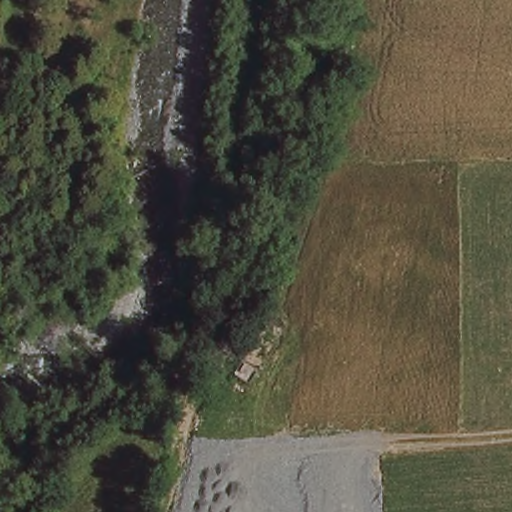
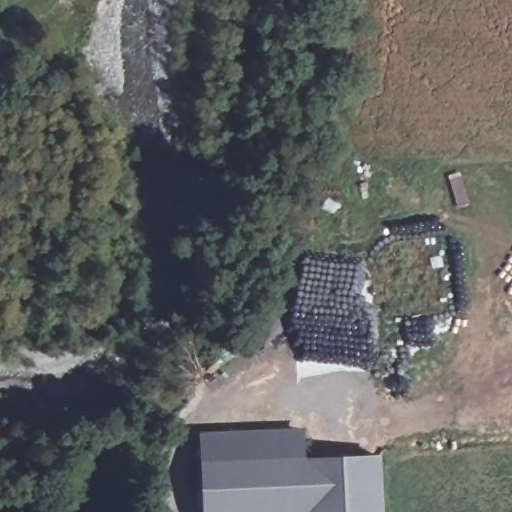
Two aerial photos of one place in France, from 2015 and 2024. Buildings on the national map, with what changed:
new [(202,464),(199,432),(304,428),(306,460),(202,464)]
new [(382,457),(384,512),(204,512),(202,464),(382,457)]

